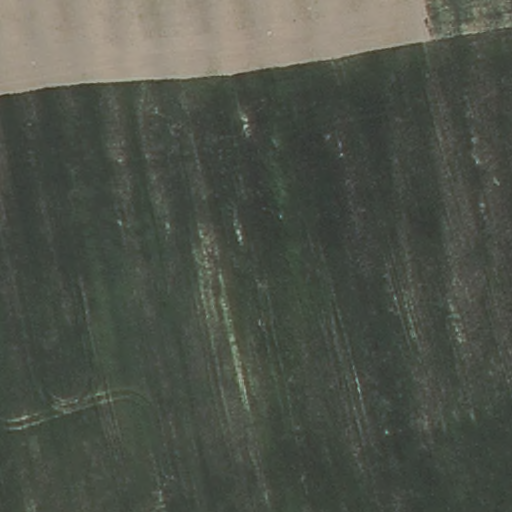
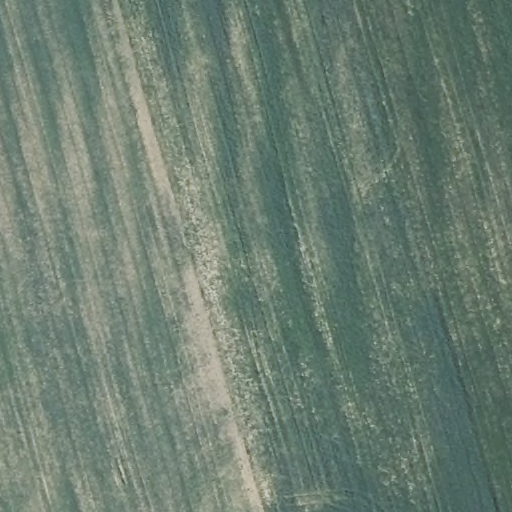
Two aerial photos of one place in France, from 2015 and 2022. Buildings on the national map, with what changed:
[]

